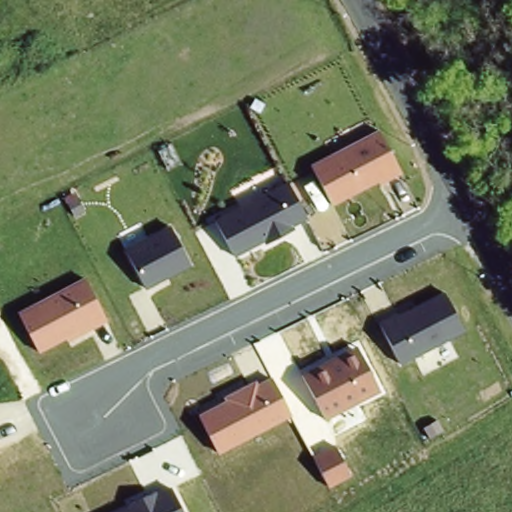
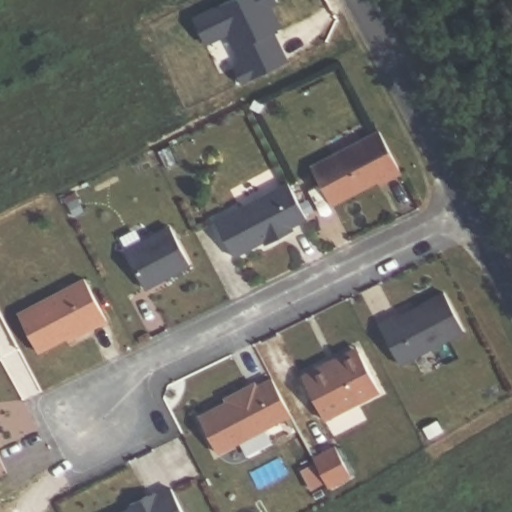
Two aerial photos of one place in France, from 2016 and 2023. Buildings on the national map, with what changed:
new [(277,0),(278,1),(269,5),(281,28),(268,34),(275,48),(280,45),(287,61),(241,84),(234,68),(243,64),(228,33),(206,44),(193,19),(233,0),(277,0)]
unchanged [(379,129),(401,172),(333,205),(310,163),(379,129)]
unchanged [(213,215),(286,179),(308,220),(293,227),(294,230),(267,245),(265,242),(234,257),(213,215)]
unchanged [(172,223),(191,266),(144,288),(122,250),(172,223)]
unchanged [(84,276),(105,322),(68,340),(66,338),(38,351),(18,311),(84,276)]
unchanged [(444,292),(462,330),(400,362),(381,324),(444,292)]
unchanged [(358,345),(380,390),(324,418),(301,375),(358,345)]
unchanged [(199,415),(225,402),(223,398),(256,381),(258,383),(273,376),(292,416),(218,454),(199,415)]
new [(337,446),(352,475),(330,487),(314,458),(337,446)]
unchanged [(173,487),(184,512),(121,512),(173,487)]

